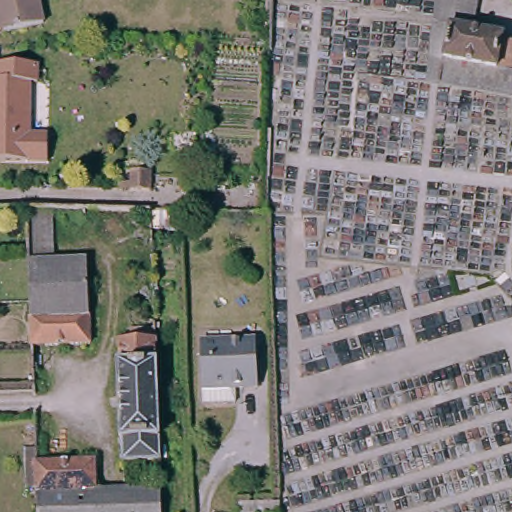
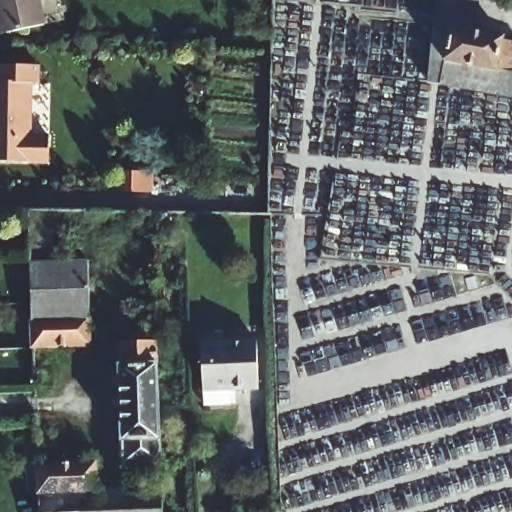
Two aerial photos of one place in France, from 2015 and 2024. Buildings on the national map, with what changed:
unchanged [(8,30),(0,31),(0,0),(38,0),(43,23),(8,30)]
unchanged [(475,0),(472,47),(426,38),(430,0),(475,0)]
unchanged [(491,85),(434,73),(436,64),(424,60),(426,38),(472,47),(497,52),(496,57),(512,62),(512,90),(491,85)]
unchanged [(32,80),(33,130),(49,131),(48,158),(0,158),(0,60),(37,60),(38,80),(32,80)]
unchanged [(121,192),(121,172),(151,172),(151,193),(121,192)]
unchanged [(158,193),(157,183),(176,184),(176,194),(158,193)]
unchanged [(27,280),(27,277),(26,260),(85,260),(88,342),(29,343),(28,303),(27,280)]
unchanged [(161,462),(122,464),(121,441),(118,441),(116,367),(119,367),(119,346),(131,346),(130,331),(158,330),(161,462)]
unchanged [(204,343),(259,342),(260,390),(238,391),(238,406),(206,407),(206,392),(204,343)]
unchanged [(36,463),(36,459),(36,450),(94,450),(96,478),(122,478),(122,464),(161,462),(162,512),(37,512),(37,510),(36,463)]
unchanged [(241,504),(281,505),(281,512),(241,512),(241,504)]

